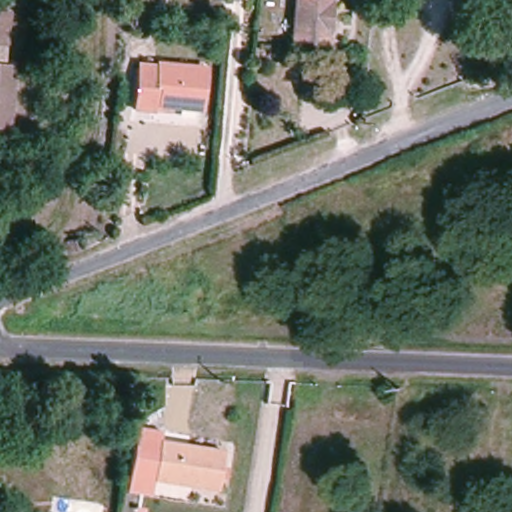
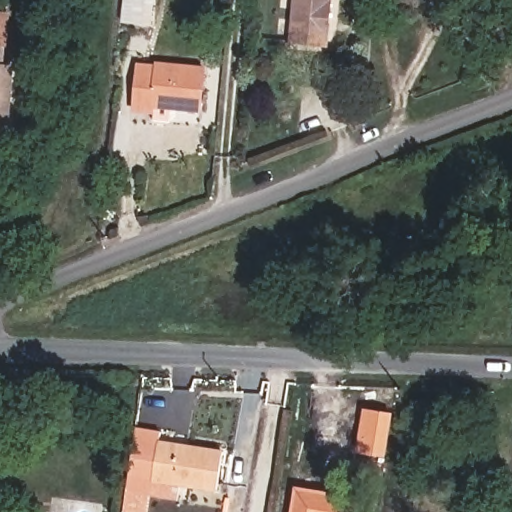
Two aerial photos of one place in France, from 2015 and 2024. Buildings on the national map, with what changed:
unchanged [(292,40),(295,0),(329,0),(325,43),(292,40)]
unchanged [(5,45),(0,45),(0,10),(8,11),(5,45)]
unchanged [(206,108),(163,105),(162,109),(143,107),(146,63),(209,65),(206,108)]
unchanged [(0,128),(0,64),(11,64),(12,129),(0,128)]
new [(385,457),(356,452),(364,407),(392,412),(385,457)]
unchanged [(153,481),(151,496),(128,493),(138,429),(162,432),(161,438),(159,437),(153,481)]
unchanged [(153,481),(159,437),(161,438),(222,448),(216,491),(153,481)]
new [(295,486),(346,494),(344,512),(291,512),(295,486)]

